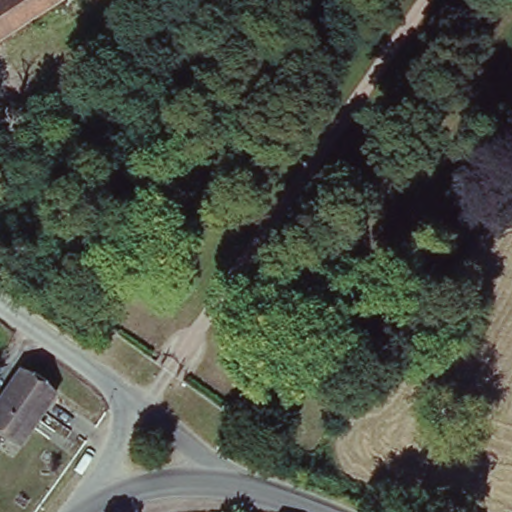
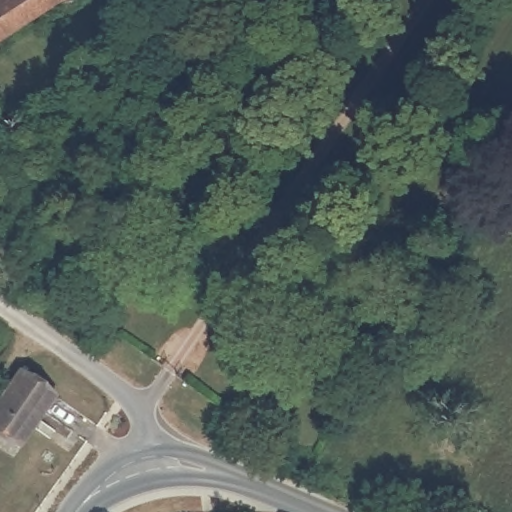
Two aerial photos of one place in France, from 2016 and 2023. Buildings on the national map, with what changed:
unchanged [(25,24),(0,44),(0,0),(56,0),(25,24)]
unchanged [(23,445),(0,430),(0,402),(21,370),(57,394),(23,445)]

